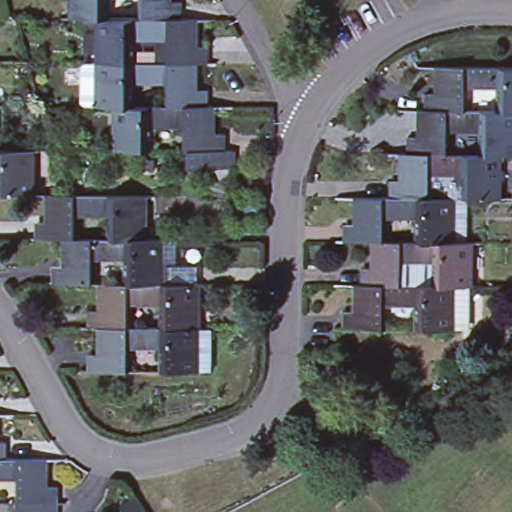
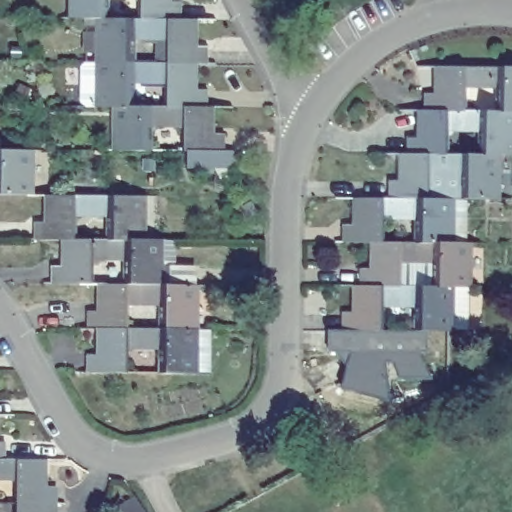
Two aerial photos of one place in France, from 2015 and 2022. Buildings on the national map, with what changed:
unchanged [(103,19),(96,19),(69,19),(69,0),(102,0),(103,19)]
unchanged [(162,3),(172,2),(172,19),(140,19),(136,19),(136,0),(162,0),(162,3)]
unchanged [(190,45),(201,45),(201,66),(190,66),(163,65),(163,38),(130,38),(129,65),(96,65),(96,19),(103,19),(136,19),(140,19),(172,19),(191,19),(190,45)]
unchanged [(470,85),(470,111),(455,111),(434,111),(434,90),(443,90),(443,64),(512,62),(512,111),(505,111),(505,84),(470,85)]
unchanged [(96,65),(129,65),(163,65),(190,66),(189,90),(200,90),(200,112),(163,112),(163,84),(130,84),(129,112),(114,112),(100,111),(95,111),(96,65)]
unchanged [(424,137),(425,111),(434,111),(455,111),(470,111),(505,111),(512,111),(512,155),(500,155),(486,154),(486,126),(450,127),(450,154),(439,154),(429,154),(415,154),(415,137),(424,137)]
unchanged [(228,170),(209,170),(199,170),(184,170),(184,151),(180,151),(180,125),(147,125),(147,151),(113,151),(114,112),(129,112),(163,112),(200,112),(208,113),(208,136),(216,136),(217,152),(228,152),(228,170)]
unchanged [(37,146),(37,195),(28,195),(4,195),(4,169),(0,168),(0,146),(37,146)]
unchanged [(415,154),(429,154),(439,154),(450,154),(486,154),(500,155),(501,198),(467,198),(467,173),(432,172),(432,198),(397,198),(397,179),(407,180),(407,154),(415,154)]
unchanged [(55,195),(149,195),(150,237),(139,237),(117,237),(117,211),(82,210),(82,236),(75,236),(46,236),(46,220),(55,220),(55,195)]
unchanged [(397,198),(432,198),(457,198),(456,242),(435,242),(424,242),(424,216),(389,215),(389,242),(378,241),(351,241),(352,225),(362,224),(363,198),(397,198)]
unchanged [(134,254),(101,254),(100,279),(65,279),(65,264),(74,264),(75,236),(82,236),(117,237),(139,237),(150,237),(168,237),(169,280),(150,280),(141,280),(134,280),(134,254)]
unchanged [(439,260),(405,260),(405,285),(368,285),(368,268),(378,268),(378,241),(389,242),(424,242),(435,242),(456,242),(473,242),(473,285),(455,285),(439,285),(439,260)]
unchanged [(134,280),(141,280),(150,280),(169,280),(202,280),(202,328),(169,328),(169,301),(135,302),(134,328),(114,327),(108,327),(98,327),(98,306),(108,306),(108,280),(134,280)]
unchanged [(368,285),(405,285),(439,285),(455,285),(456,327),(422,327),(422,301),(388,300),(387,327),(352,327),(351,311),(362,312),(362,285),(368,285)]
unchanged [(169,346),(134,345),(134,372),(98,371),(98,354),(108,354),(108,327),(114,327),(134,328),(141,328),(169,328),(202,328),(201,372),(168,372),(169,346)]
new [(330,334),(428,335),(428,356),(421,356),(433,382),(401,382),(393,364),(386,366),(392,404),(343,392),(348,370),(337,356),(330,355),(330,334)]
unchanged [(38,454),(39,480),(50,480),(50,499),(13,499),(12,473),(0,473),(0,454),(38,454)]
unchanged [(58,512),(15,512),(15,501),(58,502),(58,512)]

